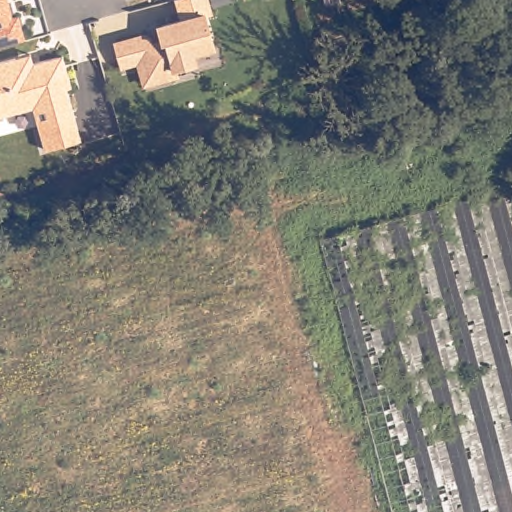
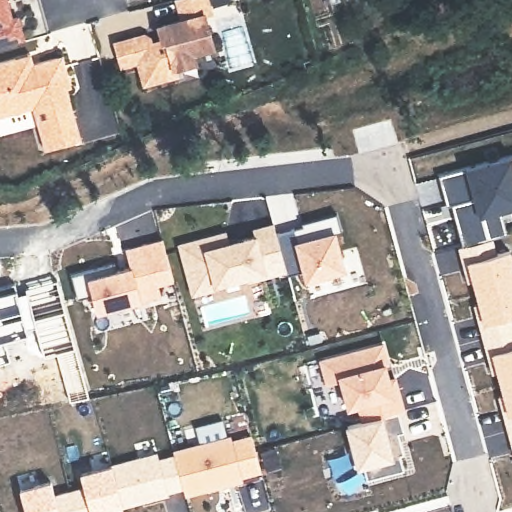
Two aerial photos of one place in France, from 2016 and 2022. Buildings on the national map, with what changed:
unchanged [(13,17),(21,14),(28,38),(0,46),(0,0),(8,0),(13,17)]
unchanged [(212,12),(204,15),(206,24),(209,23),(215,43),(194,48),(198,62),(177,68),(179,75),(145,84),(139,62),(124,66),(122,66),(115,43),(117,43),(146,34),(151,37),(153,44),(167,39),(163,25),(184,19),(178,0),(208,0),(212,12)]
unchanged [(16,58),(31,54),(34,63),(63,55),(72,87),(67,88),(81,139),(46,149),(39,125),(54,121),(51,110),(42,105),(0,117),(0,63),(16,58)]
new [(461,214),(458,202),(443,206),(435,175),(512,154),(512,206),(497,210),(504,234),(459,246),(451,216),(461,214)]
new [(272,234),(290,229),(292,236),(301,234),(298,223),(333,214),(338,232),(331,234),(340,270),(321,275),(322,279),(304,284),(300,271),(284,276),(282,270),(272,234)]
new [(282,271),(244,281),(242,277),(212,285),(213,289),(189,295),(175,245),(222,232),(225,243),(251,236),(249,230),(270,224),(282,271)]
new [(512,250),(512,443),(501,404),(506,402),(496,366),(490,367),(475,311),(480,310),(472,274),(466,276),(459,246),(493,237),(496,253),(512,250)]
new [(110,266),(112,273),(126,269),(121,251),(158,241),(169,282),(154,287),(157,298),(93,315),(88,297),(73,301),(67,278),(110,266)]
new [(360,422),(356,406),(346,409),(338,382),(324,386),(318,362),(380,345),(385,365),(380,367),(384,379),(385,378),(386,381),(392,379),(400,411),(360,422)]
new [(395,413),(401,433),(391,435),(394,444),(398,443),(401,455),(397,456),(401,471),(364,481),(360,466),(351,469),(346,448),(350,447),(345,426),(395,413)]
new [(227,437),(228,442),(248,437),(257,472),(238,477),(239,481),(181,496),(170,453),(227,437)]
new [(105,511),(105,512),(25,512),(20,490),(51,484),(54,496),(85,489),(81,474),(159,454),(169,495),(105,511)]

